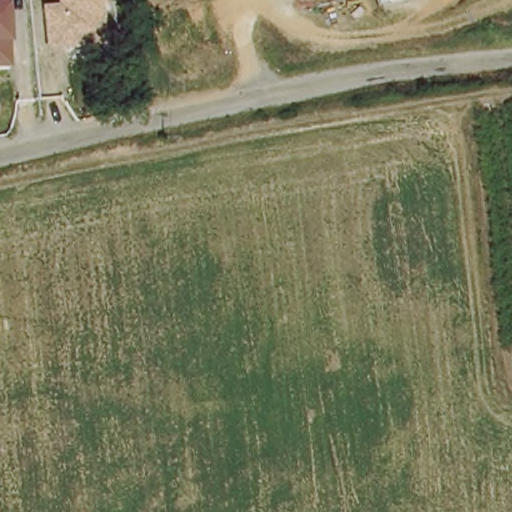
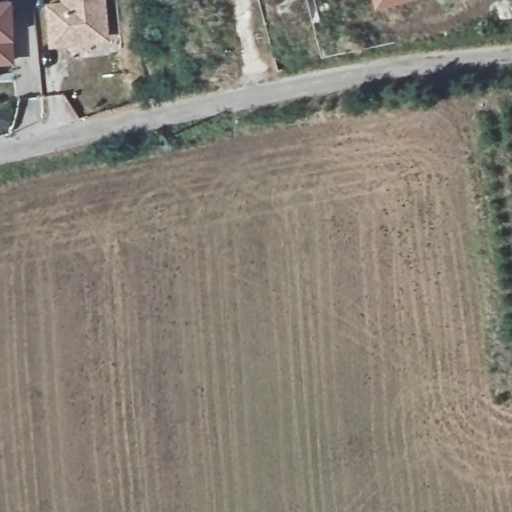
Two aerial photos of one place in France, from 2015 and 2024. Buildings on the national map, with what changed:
unchanged [(0,65),(0,0),(13,0),(15,39),(16,65),(0,65)]
unchanged [(62,1),(62,0),(104,0),(110,42),(52,49),(45,4),(62,1)]
unchanged [(376,12),(373,0),(417,0),(417,1),(376,12)]

